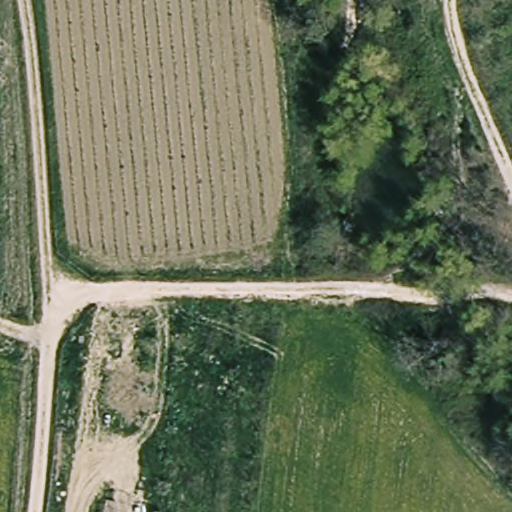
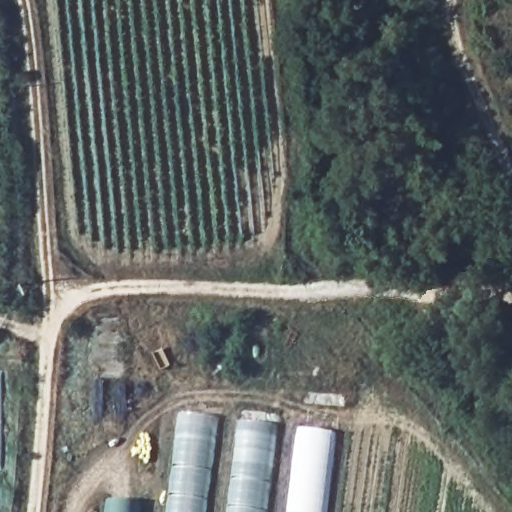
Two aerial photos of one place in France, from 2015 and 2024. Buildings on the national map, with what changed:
demolished [(138,336),(135,336),(132,375),(103,372),(104,358),(119,360),(122,335),(104,333),(107,316),(139,319),(138,336)]
new [(178,413),(219,418),(207,512),(166,512),(178,413)]
new [(238,422),(278,427),(268,512),(227,512),(238,422)]
new [(297,430),(337,434),(328,512),(287,512),(297,430)]

